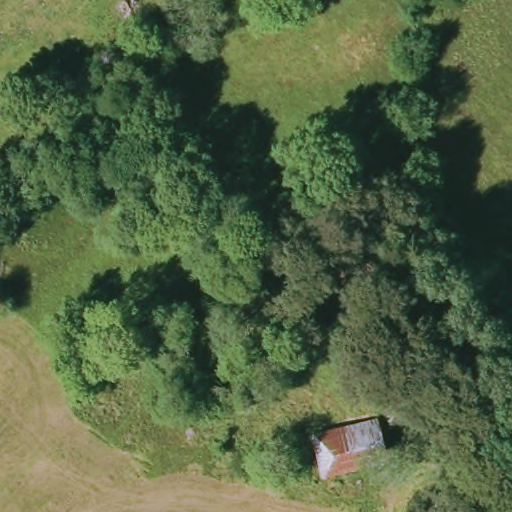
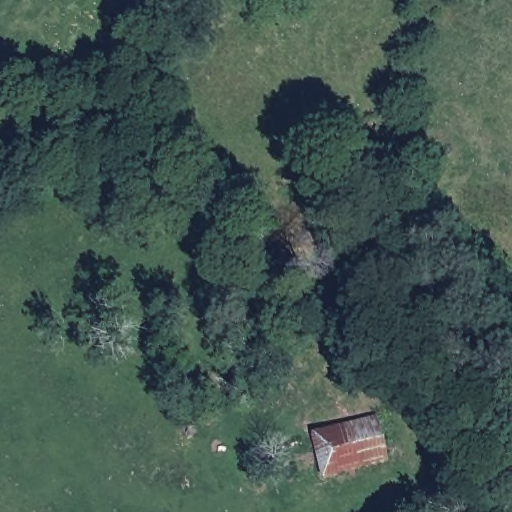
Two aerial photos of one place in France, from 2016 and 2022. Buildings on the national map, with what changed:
unchanged [(324,476),(314,435),(380,419),(389,462),(324,476)]

